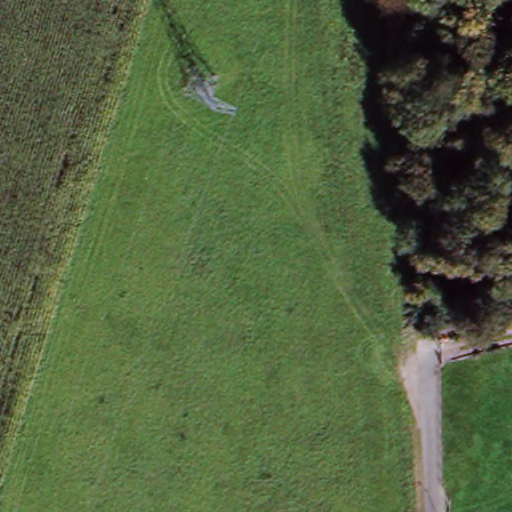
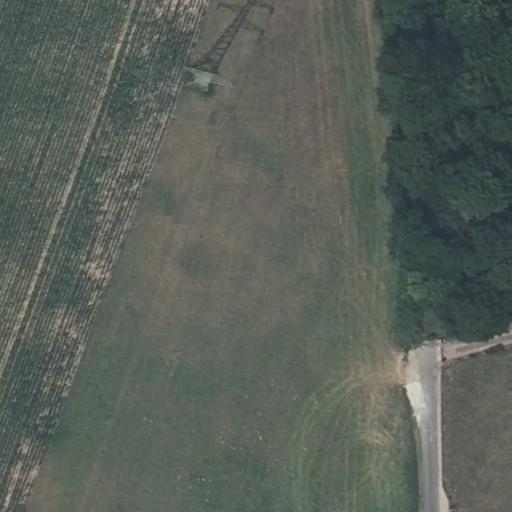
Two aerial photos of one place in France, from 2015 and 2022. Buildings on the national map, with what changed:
[]

